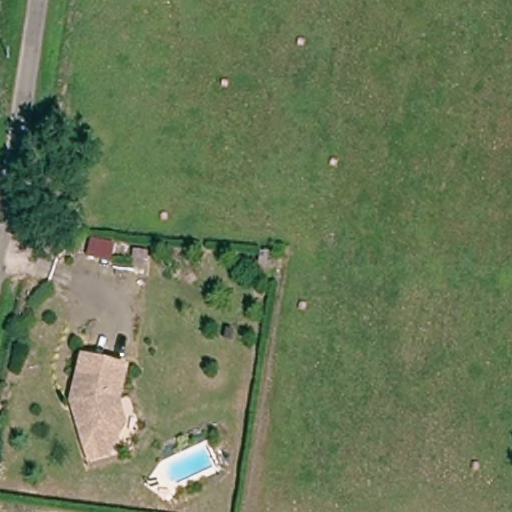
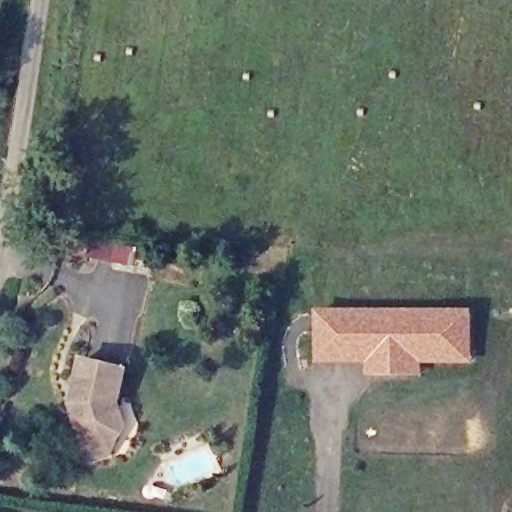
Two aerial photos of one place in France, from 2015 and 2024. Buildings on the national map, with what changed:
new [(139,244),(134,269),(86,259),(91,234),(139,244)]
new [(368,378),(367,364),(320,365),(317,312),(471,312),(471,366),(422,366),(421,380),(368,378)]
unchanged [(83,461),(79,448),(66,403),(77,360),(120,370),(111,402),(118,426),(110,439),(101,456),(83,461)]

